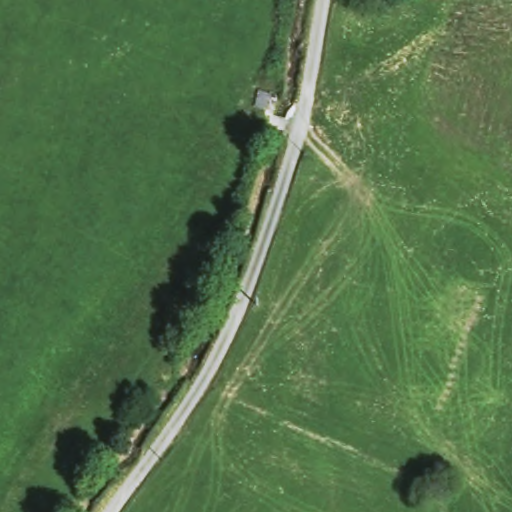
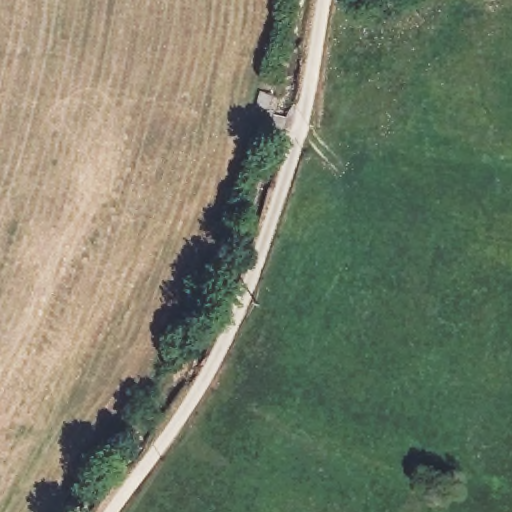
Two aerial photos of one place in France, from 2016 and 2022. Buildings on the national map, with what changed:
unchanged [(270,91),(267,108),(253,106),(256,90),(270,91)]

